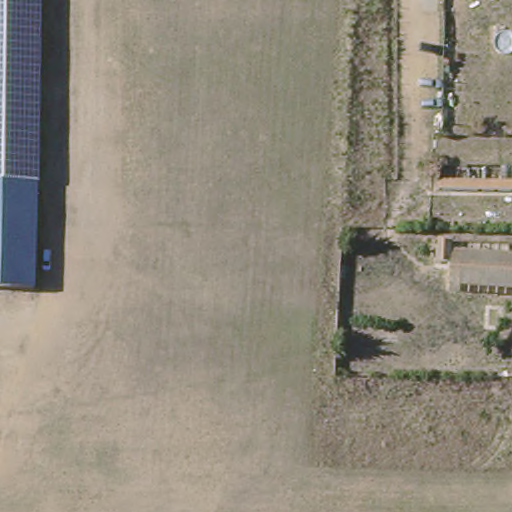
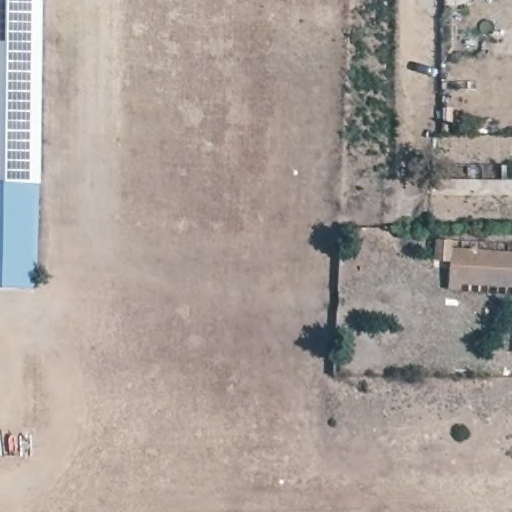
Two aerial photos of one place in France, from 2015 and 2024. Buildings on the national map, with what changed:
unchanged [(33,178),(0,177),(0,0),(36,0),(33,178)]
unchanged [(512,180),(512,191),(439,190),(439,179),(512,180)]
unchanged [(31,289),(0,288),(0,182),(34,183),(31,289)]
unchanged [(450,264),(435,263),(437,239),(453,241),(453,248),(512,251),(512,287),(448,283),(450,264)]

